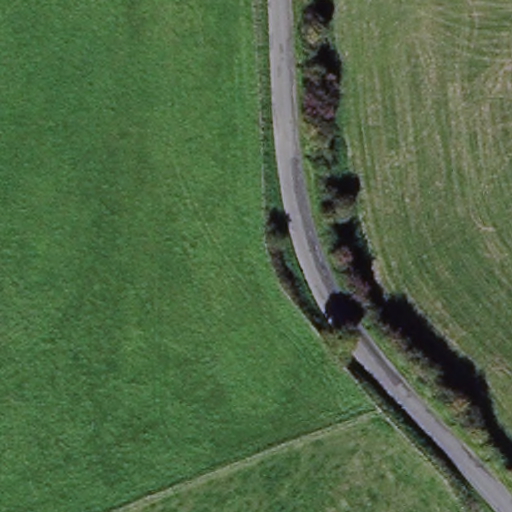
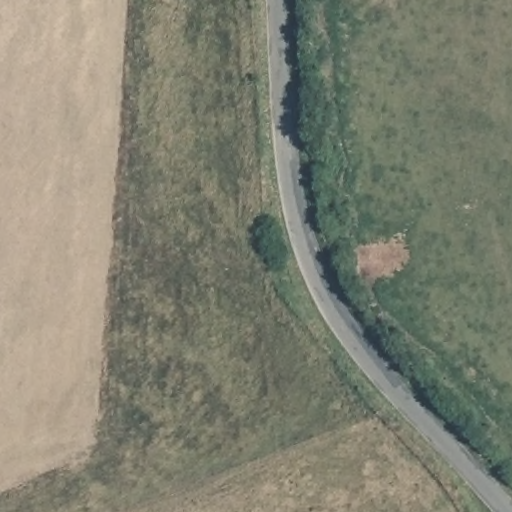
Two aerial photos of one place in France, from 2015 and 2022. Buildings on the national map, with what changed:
[]

